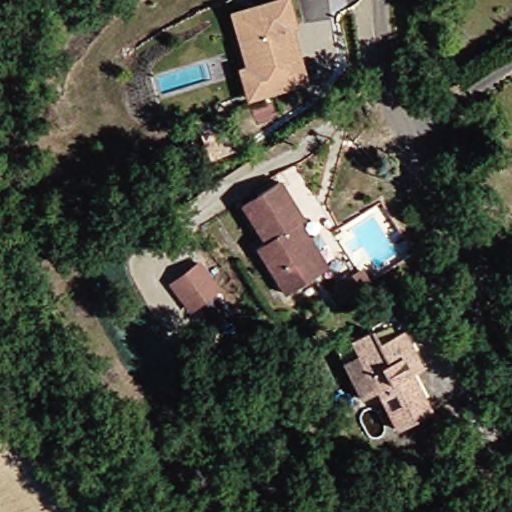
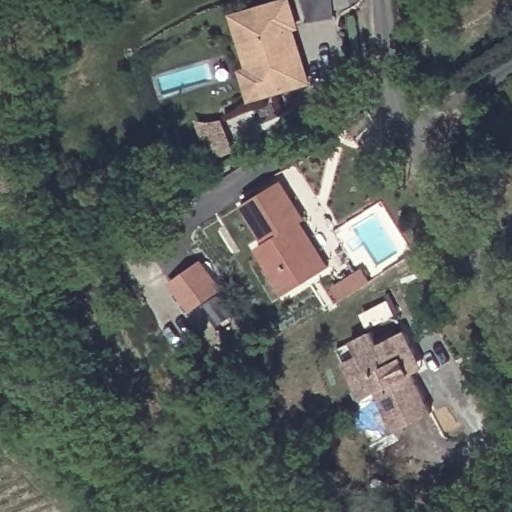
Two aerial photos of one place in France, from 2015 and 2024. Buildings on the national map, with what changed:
unchanged [(295,91),(258,100),(254,79),(261,77),(252,42),(262,39),(256,13),(259,12),(291,4),(293,13),(297,32),(292,33),(300,69),(305,89),(295,91)]
unchanged [(249,102),(242,74),(250,72),(237,17),(256,13),(262,39),(252,42),(261,77),(254,79),(258,100),(249,102)]
unchanged [(319,269),(282,292),(256,248),(263,243),(240,203),(278,179),(303,219),(301,221),(328,264),(319,269)]
unchanged [(201,260),(220,286),(192,307),(173,281),(201,260)]
unchanged [(340,292),(368,274),(375,286),(347,304),(340,292)]
unchanged [(372,394),(357,402),(347,383),(339,365),(332,350),(346,343),(369,331),(375,343),(396,332),(407,354),(413,368),(407,371),(427,413),(391,432),(372,394)]

